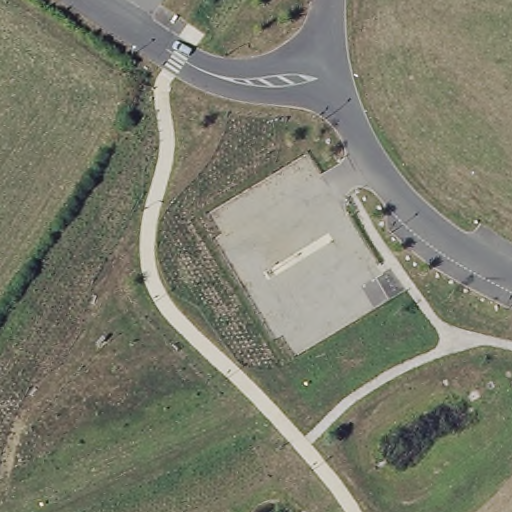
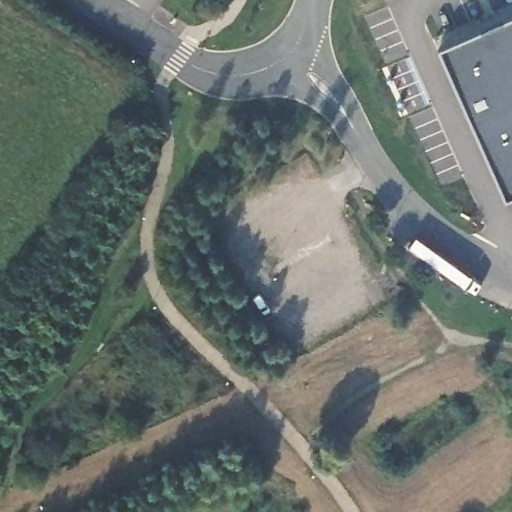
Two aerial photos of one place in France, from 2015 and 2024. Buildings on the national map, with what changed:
new [(512,5),(512,193),(507,195),(474,121),(436,39),(512,5)]

